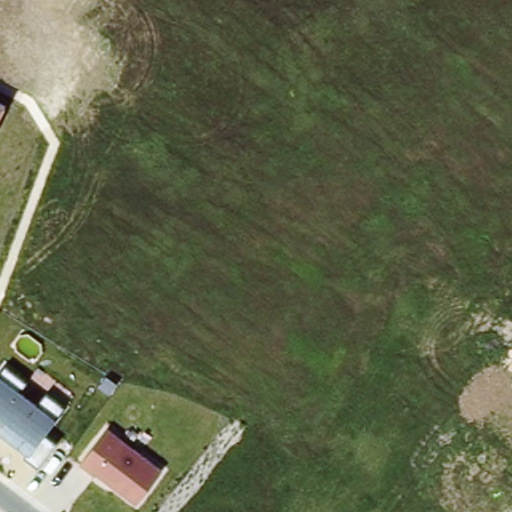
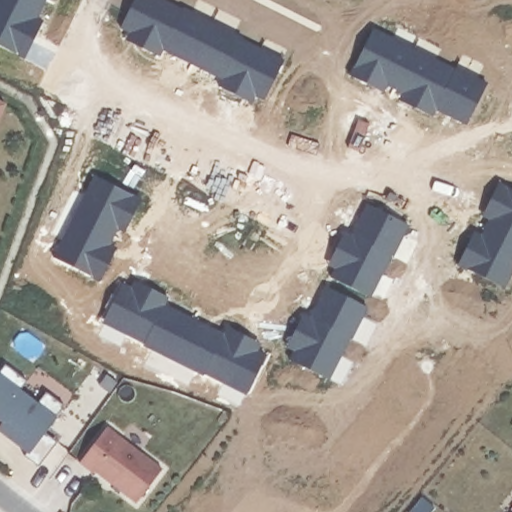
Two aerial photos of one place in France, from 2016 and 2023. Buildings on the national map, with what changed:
new [(46,0),(27,39),(30,40),(22,57),(0,46),(0,0),(46,0)]
new [(154,0),(162,4),(163,0),(182,10),(183,8),(243,39),(242,40),(261,49),(260,52),(282,64),(265,100),(238,87),(235,95),(219,87),(223,80),(163,50),(160,56),(143,49),(147,41),(121,27),(135,0),(154,0)]
new [(374,30),(393,38),(391,41),(435,64),(437,60),(455,70),(456,68),(487,84),(467,125),(435,109),(432,116),(416,109),(420,101),(370,76),(366,84),(350,76),(374,30)]
unchanged [(8,105),(0,121),(0,101),(8,105)]
new [(64,240),(67,240),(89,196),(87,195),(95,176),(142,200),(133,215),(126,211),(101,261),(108,266),(100,280),(55,257),(64,240)]
new [(474,253),(499,203),(492,199),(499,184),(512,190),(512,266),(511,268),(512,268),(512,273),(505,288),(458,265),(467,250),(474,253)]
new [(345,252),(337,247),(345,232),(353,236),(368,205),(409,225),(393,256),(392,256),(382,275),(379,273),(367,296),(332,278),(345,252)]
new [(122,285),(149,297),(152,290),(168,297),(164,305),(225,335),(228,328),(244,335),(240,343),(266,356),(248,391),(225,380),(224,382),(205,373),(205,375),(145,345),(145,343),(127,334),(128,331),(105,320),(122,285)]
new [(303,334),(296,330),(304,315),(312,318),(327,287),(367,307),(352,338),(350,337),(340,356),(337,355),(326,378),(290,360),(303,334)]
unchanged [(3,364),(27,382),(22,390),(37,402),(47,392),(65,406),(44,434),(55,441),(38,465),(23,456),(25,452),(0,434),(0,369),(3,364)]
unchanged [(107,426),(162,469),(135,502),(95,471),(94,474),(79,465),(107,426)]

